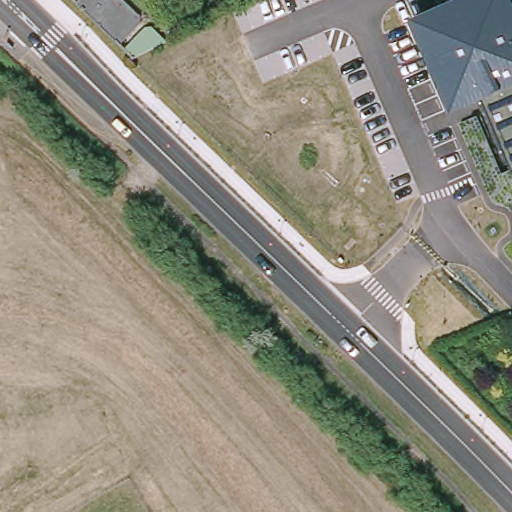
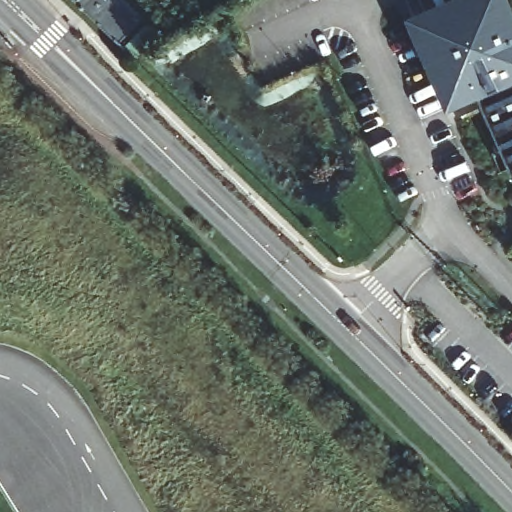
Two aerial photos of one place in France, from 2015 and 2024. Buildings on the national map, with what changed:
unchanged [(131,35),(122,45),(74,0),(124,0),(145,21),(164,40),(146,50),(131,35)]
unchanged [(482,98),(448,113),(408,18),(452,0),(512,0),(512,174),(482,98)]

